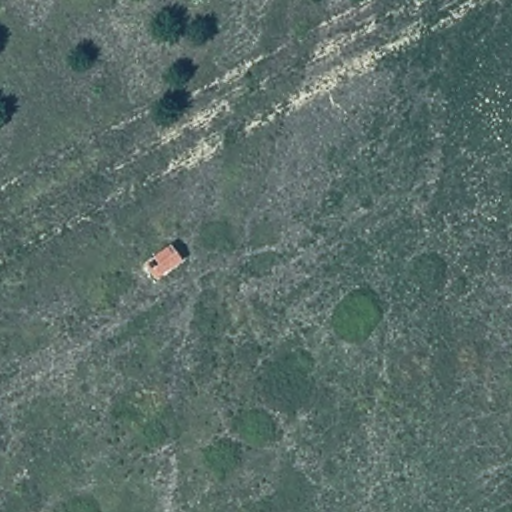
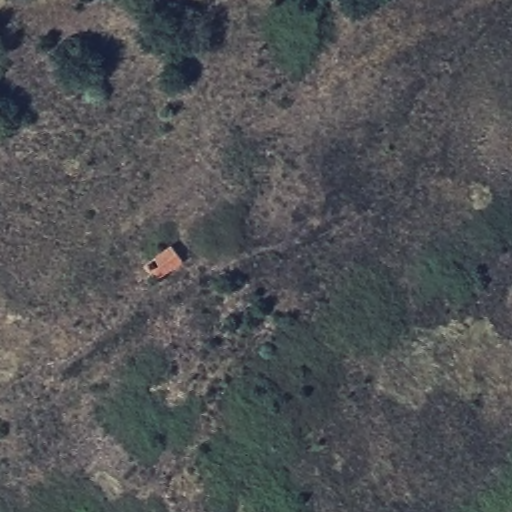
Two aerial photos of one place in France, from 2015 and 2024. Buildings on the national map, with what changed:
unchanged [(163,244),(179,264),(153,285),(137,263),(163,244)]

